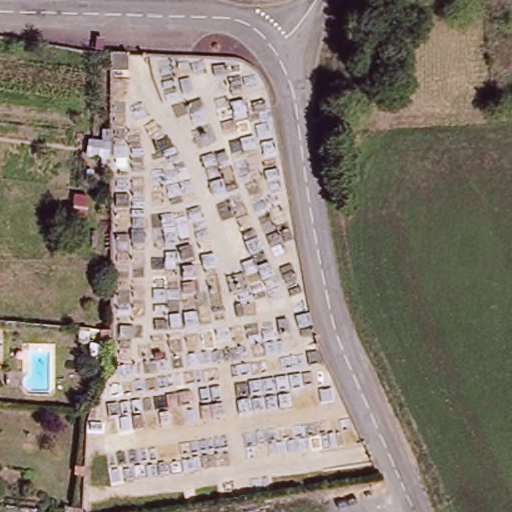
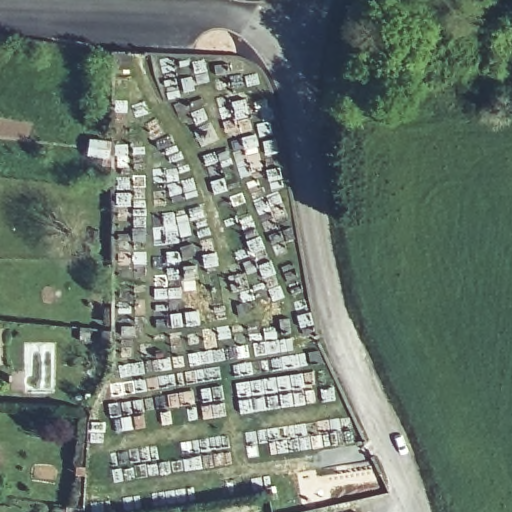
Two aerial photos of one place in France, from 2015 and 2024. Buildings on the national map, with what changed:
unchanged [(110,348),(78,346),(80,331),(110,333),(110,348)]

